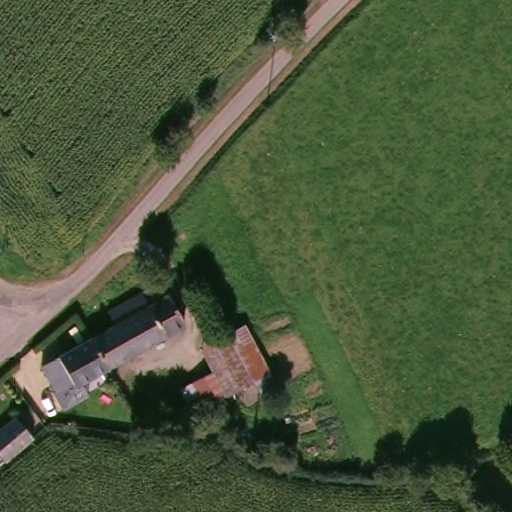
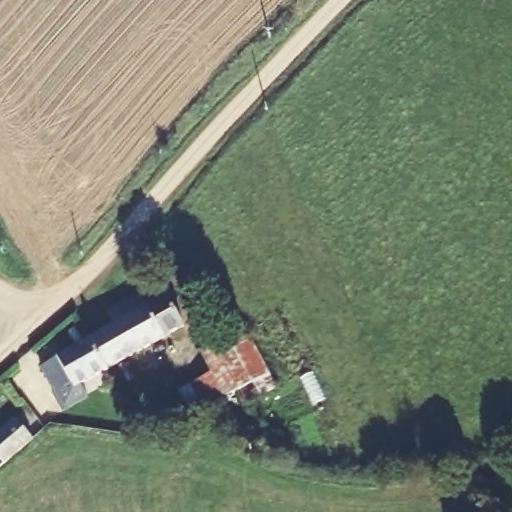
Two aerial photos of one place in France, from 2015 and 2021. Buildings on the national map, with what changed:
unchanged [(89,339),(115,327),(109,315),(159,287),(165,298),(169,296),(185,326),(107,370),(89,339)]
unchanged [(200,352),(230,334),(244,327),(255,349),(210,372),(200,352)]
unchanged [(59,418),(46,396),(60,390),(45,364),(89,339),(107,370),(74,387),(83,406),(59,418)]
unchanged [(192,419),(177,390),(210,372),(255,349),(270,375),(277,389),(262,399),(256,384),(192,419)]
unchanged [(10,428),(29,452),(0,474),(0,436),(10,428)]

